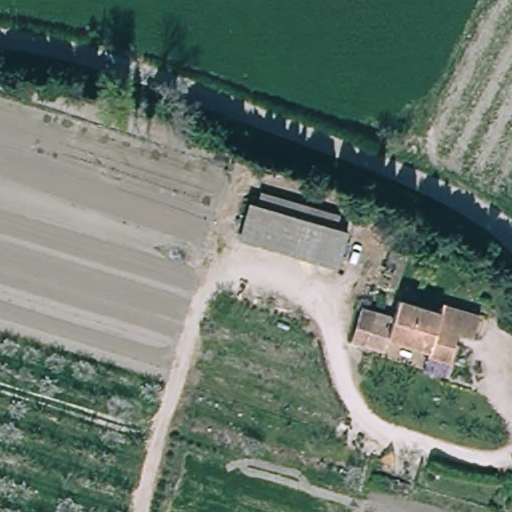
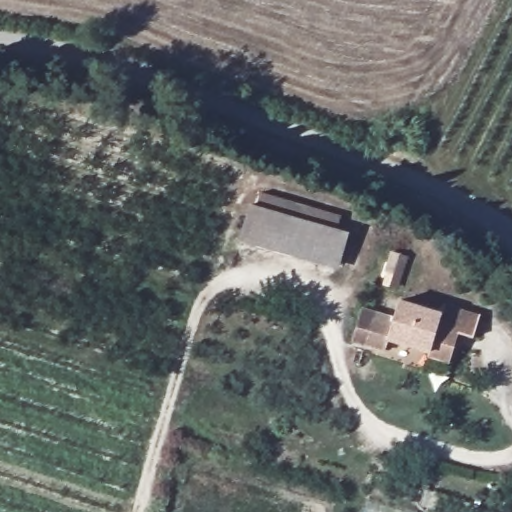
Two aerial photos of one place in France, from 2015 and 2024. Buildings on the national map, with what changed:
unchanged [(183,107),(178,119),(157,113),(164,100),(183,107)]
unchanged [(353,237),(342,270),(245,239),(256,206),(353,237)]
unchanged [(387,331),(395,305),(442,315),(444,308),(477,317),(472,340),(458,336),(447,366),(429,360),(430,354),(386,344),(380,360),(356,355),(364,325),(387,331)]

